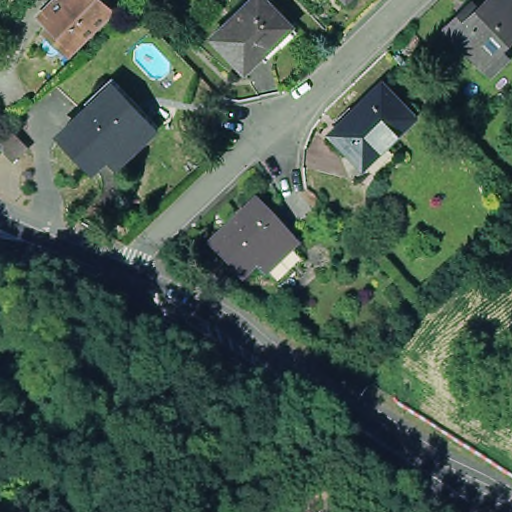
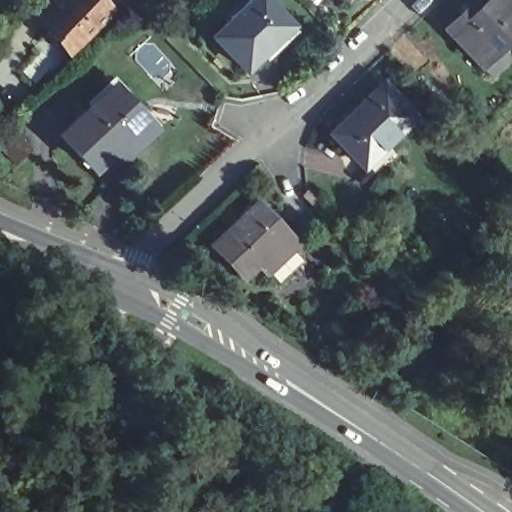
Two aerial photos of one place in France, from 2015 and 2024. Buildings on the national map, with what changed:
unchanged [(70,55),(44,30),(50,24),(41,15),(53,4),(55,6),(62,0),(97,0),(110,14),(70,55)]
unchanged [(260,52),(258,51),(241,67),(210,34),(247,0),(269,0),(290,24),(260,52)]
unchanged [(344,0),(347,0),(345,1),(344,0)]
unchanged [(480,69),(450,36),(465,22),(471,28),(501,0),(511,0),(512,1),(512,49),(501,60),(495,55),(480,69)]
unchanged [(69,124),(121,75),(163,118),(126,152),(118,144),(101,158),(69,124)]
unchanged [(413,120),(385,147),(390,153),(366,175),(330,137),(381,87),(413,120)]
unchanged [(10,161),(0,150),(0,141),(10,131),(25,149),(10,161)]
unchanged [(266,270),(256,261),(242,275),(211,243),(254,202),(295,244),(266,270)]

